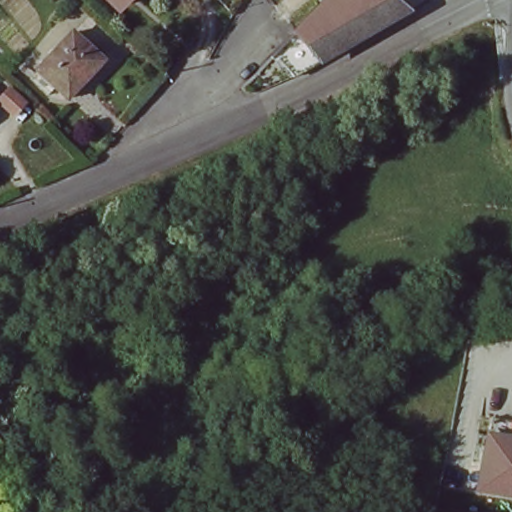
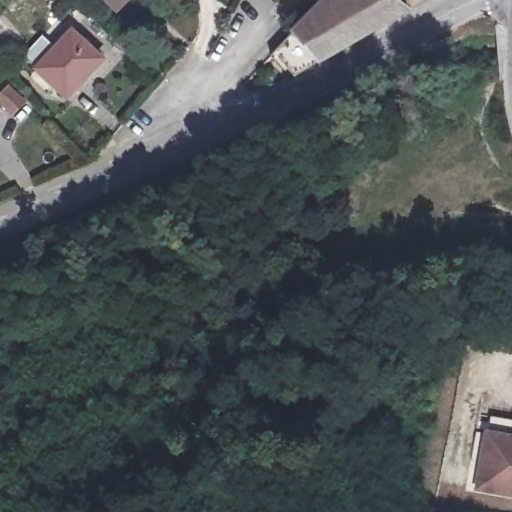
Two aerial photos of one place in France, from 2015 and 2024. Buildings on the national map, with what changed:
unchanged [(118,0),(121,0),(119,1),(118,0)]
unchanged [(356,41),(324,61),(296,78),(274,51),(295,28),(322,0),(395,0),(408,9),(356,41)]
unchanged [(103,58),(68,96),(37,68),(72,30),(103,58)]
unchanged [(477,498),(491,427),(512,431),(512,505),(477,498)]

